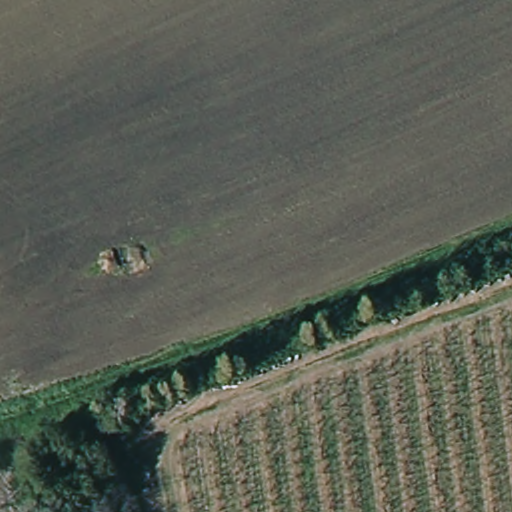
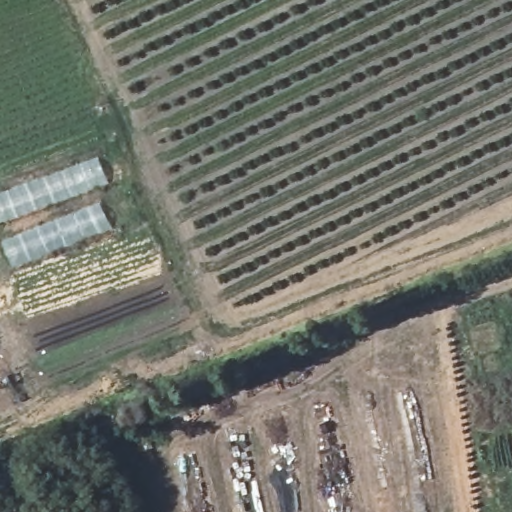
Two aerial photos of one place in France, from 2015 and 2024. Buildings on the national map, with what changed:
new [(108,184),(0,225),(0,194),(98,159),(108,184)]
new [(101,202),(111,230),(12,268),(2,241),(101,202)]
unchanged [(65,469),(71,476),(62,482),(56,475),(65,469)]
unchanged [(83,498),(85,500),(87,502),(88,505),(88,507),(86,510),(84,512),(73,512),(71,510),(70,507),(71,504),(73,501),(74,500),(76,498),(79,498),(83,498)]

